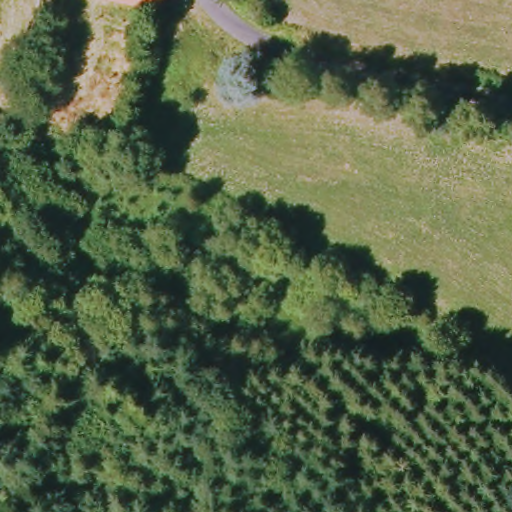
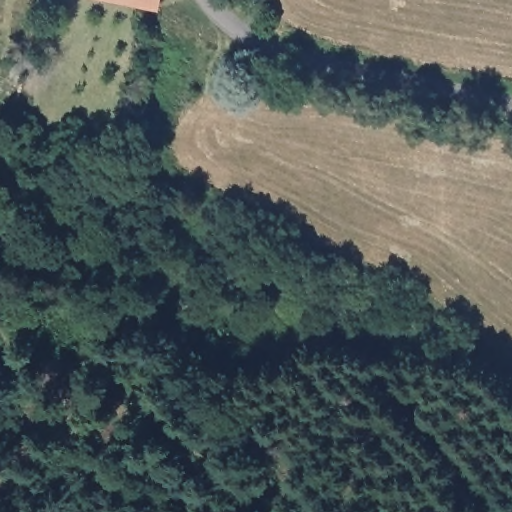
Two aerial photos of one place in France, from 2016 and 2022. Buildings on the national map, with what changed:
unchanged [(159,13),(106,0),(162,0),(159,13)]

